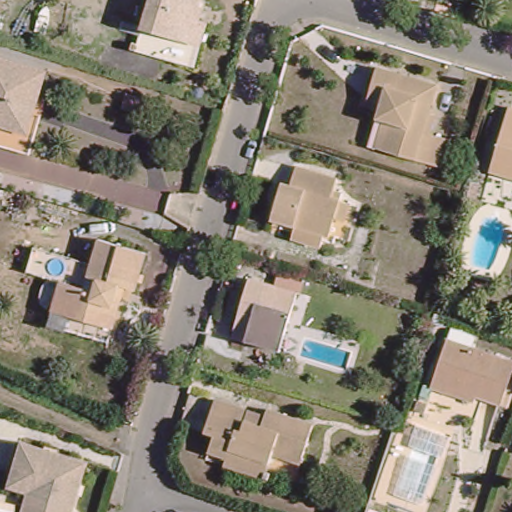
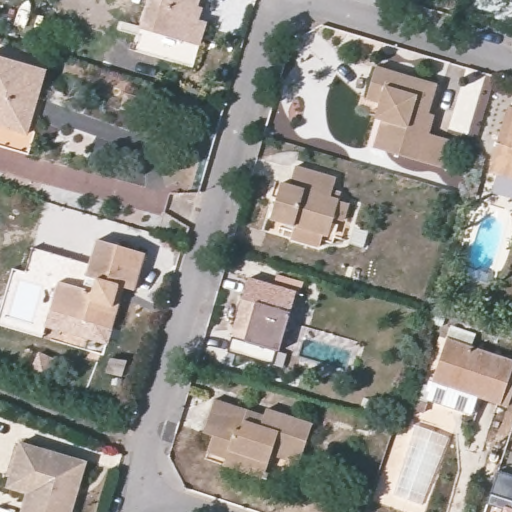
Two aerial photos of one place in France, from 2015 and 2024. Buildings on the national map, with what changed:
unchanged [(192,18),(204,22),(198,42),(137,25),(145,0),(197,0),(192,18)]
unchanged [(198,42),(190,65),(130,48),(137,25),(198,42)]
unchanged [(23,152),(0,146),(0,59),(46,72),(38,98),(32,116),(23,152)]
unchanged [(381,121),(375,120),(380,105),(366,101),(376,69),(437,87),(414,161),(379,151),(372,149),(381,121)]
unchanged [(509,107),(512,108),(512,181),(489,174),(509,107)]
unchanged [(287,241),(289,235),(291,227),(267,221),(270,208),(273,195),(277,184),(285,186),(291,167),(332,180),(326,199),(335,202),(323,237),(320,236),(316,249),(287,241)]
unchanged [(115,302),(117,303),(107,333),(50,316),(58,286),(90,295),(94,282),(83,278),(95,242),(142,256),(131,294),(118,291),(115,302)]
unchanged [(283,334),(251,324),(249,331),(233,326),(248,275),(297,289),(283,334)]
unchanged [(486,401),(432,383),(447,341),(512,364),(512,376),(501,406),(486,401)]
unchanged [(223,469),(226,460),(207,454),(212,436),(203,433),(215,399),(250,410),(249,412),(265,417),(267,409),(311,424),(298,465),(273,457),(270,468),(265,482),(246,475),(223,469)]
unchanged [(8,486),(10,479),(20,442),(85,461),(72,512),(21,512),(26,492),(8,486)]
new [(487,500),(498,470),(512,475),(512,512),(500,512),(502,505),(487,500)]

